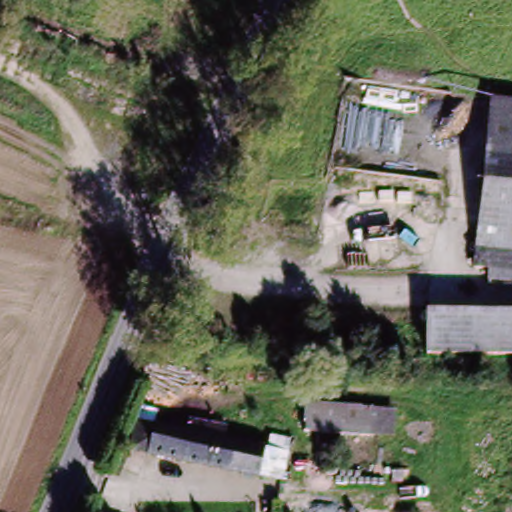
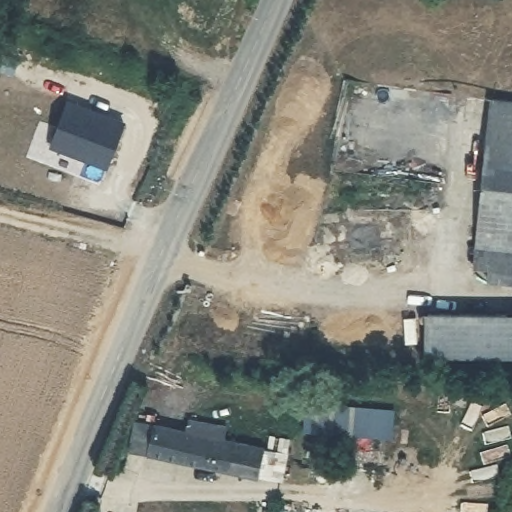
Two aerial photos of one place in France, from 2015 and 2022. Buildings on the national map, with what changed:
new [(69,98),(126,118),(110,164),(52,144),(69,98)]
unchanged [(512,109),(512,241),(503,240),(501,259),(482,257),(496,108),(512,109)]
unchanged [(498,276),(501,259),(503,240),(512,241),(512,276),(498,276)]
unchanged [(422,354),(424,316),(512,320),(512,358),(422,354)]
unchanged [(372,403),(371,436),(307,433),(308,401),(372,403)]
unchanged [(272,480),(255,477),(155,457),(139,454),(144,434),(160,437),(186,442),(190,427),(220,433),(217,448),(260,458),(276,462),(272,480)]
unchanged [(123,512),(112,512),(114,509),(123,512)]

